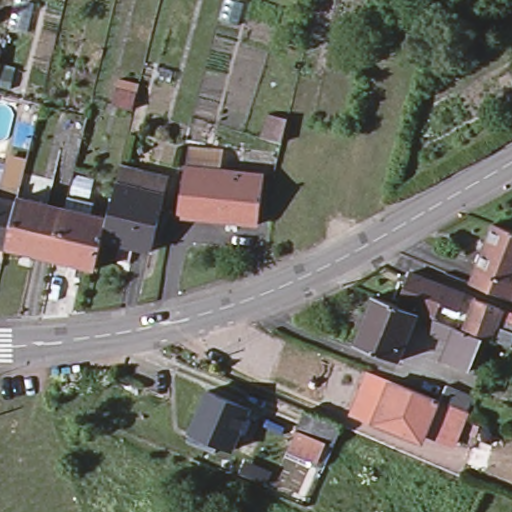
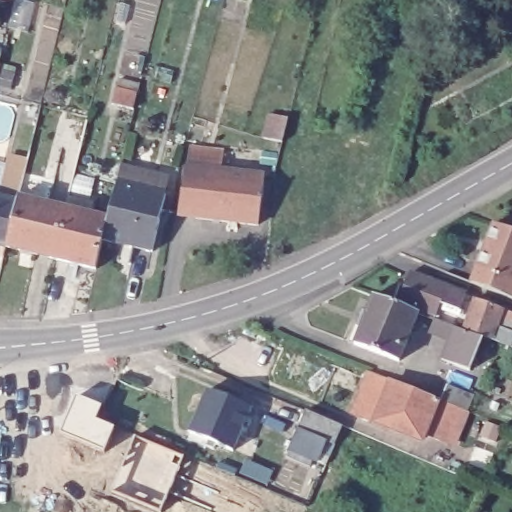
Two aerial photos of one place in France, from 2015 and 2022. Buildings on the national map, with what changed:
unchanged [(270,111),(287,115),(281,140),(263,135),(270,111)]
unchanged [(174,206),(182,157),(204,160),(195,208),(174,206)]
unchanged [(257,215),(220,210),(195,208),(204,160),(227,162),(235,163),(234,172),(263,176),(257,215)]
unchanged [(107,216),(116,179),(164,190),(150,246),(102,235),(107,216)]
unchanged [(17,200),(18,195),(65,206),(53,254),(6,242),(17,200)]
unchanged [(17,200),(6,242),(0,241),(0,196),(17,200)]
unchanged [(65,206),(107,216),(102,235),(95,264),(53,254),(65,206)]
unchanged [(512,229),(512,280),(477,266),(494,222),(512,229)]
unchanged [(477,266),(512,280),(512,297),(470,281),(477,266)]
unchanged [(457,307),(439,300),(434,313),(399,300),(411,268),(445,282),(464,290),(457,307)]
unchanged [(375,293),(417,310),(399,357),(357,340),(375,293)]
unchanged [(476,296),(502,306),(491,335),(465,325),(476,296)]
unchanged [(444,357),(450,339),(432,331),(437,317),(456,324),(484,335),(472,368),(444,357)]
unchanged [(354,407),(352,405),(352,403),(352,400),(366,368),(433,396),(420,426),(417,433),(382,418),(372,415),(354,407)]
unchanged [(435,397),(442,383),(469,393),(462,408),(450,438),(420,426),(433,396),(435,397)]
new [(77,393),(101,404),(97,417),(115,425),(105,450),(60,431),(77,393)]
unchanged [(203,397),(245,415),(227,456),(186,438),(203,397)]
unchanged [(306,406),(342,421),(334,441),(327,438),(318,458),(290,446),(298,425),(306,406)]
new [(161,512),(156,512),(112,491),(135,435),(182,456),(161,512)]
new [(273,472),(266,488),(239,477),(245,460),(273,472)]

